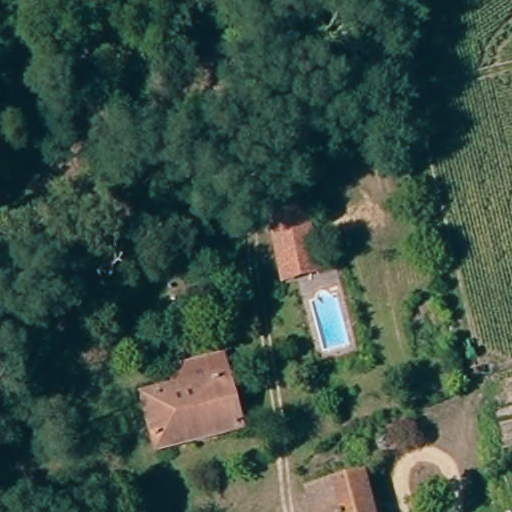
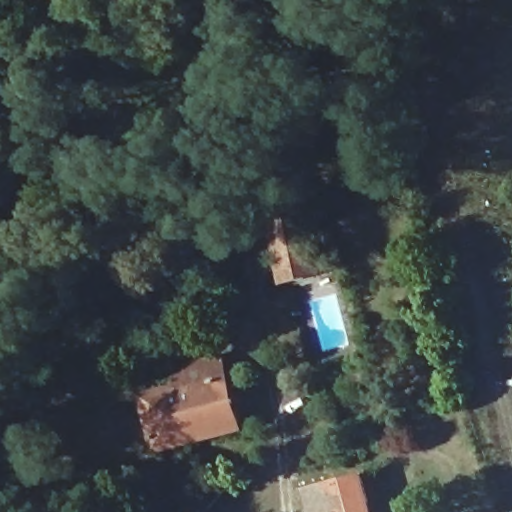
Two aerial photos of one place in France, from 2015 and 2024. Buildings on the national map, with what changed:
unchanged [(349,151),(351,104),(357,104),(378,106),(376,152),(364,152),(349,151)]
unchanged [(314,263),(280,267),(277,211),(310,208),(314,263)]
unchanged [(237,328),(200,336),(197,320),(233,312),(237,328)]
unchanged [(236,433),(154,451),(141,396),(177,388),(172,367),(218,357),(236,433)]
unchanged [(361,480),(367,512),(318,512),(314,487),(345,482),(361,480)]

